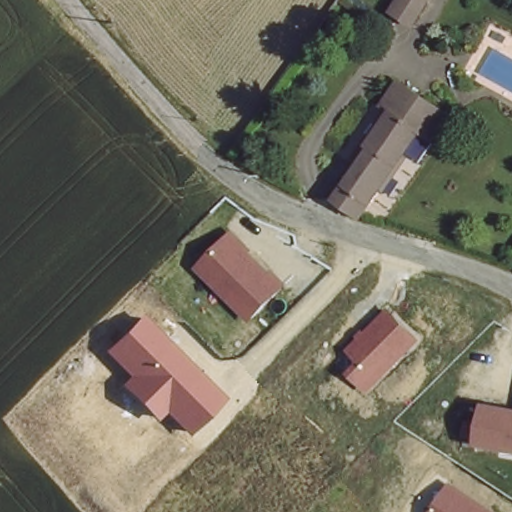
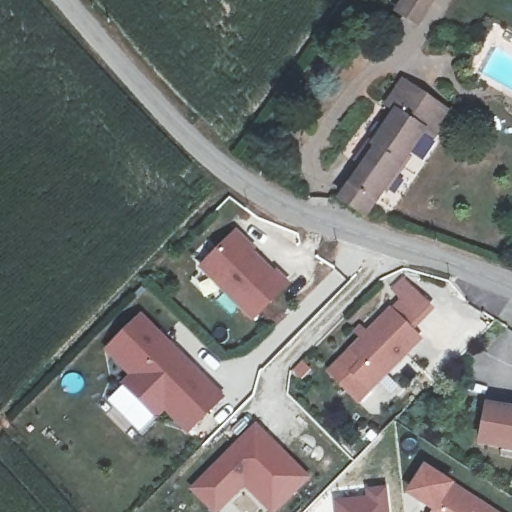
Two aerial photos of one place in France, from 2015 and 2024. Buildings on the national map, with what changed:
unchanged [(425,32),(395,13),(403,0),(445,0),(425,32)]
unchanged [(465,114),(453,139),(440,132),(390,221),(356,203),(376,166),(368,162),(396,110),(410,83),(465,114)]
unchanged [(237,231),(289,285),(250,323),(198,268),(237,231)]
new [(400,302),(390,290),(403,277),(434,310),(414,332),(393,310),(400,302)]
unchanged [(393,310),(422,341),(369,393),(350,372),(361,362),(349,349),(393,310)]
unchanged [(143,318),(226,400),(187,435),(165,413),(156,422),(122,386),(129,378),(104,350),(143,318)]
new [(361,362),(350,372),(355,376),(342,388),(325,372),(349,349),(361,362)]
unchanged [(480,446),(487,403),(512,407),(512,452),(480,446)]
new [(309,478),(275,512),(268,512),(244,487),(219,512),(212,512),(189,488),(255,422),(309,478)]
new [(413,495),(410,487),(425,467),(452,483),(435,508),(413,495)]
unchanged [(433,512),(452,483),(495,512),(433,512)]
new [(363,487),(386,485),(389,512),(333,512),(332,497),(364,496),(363,487)]

